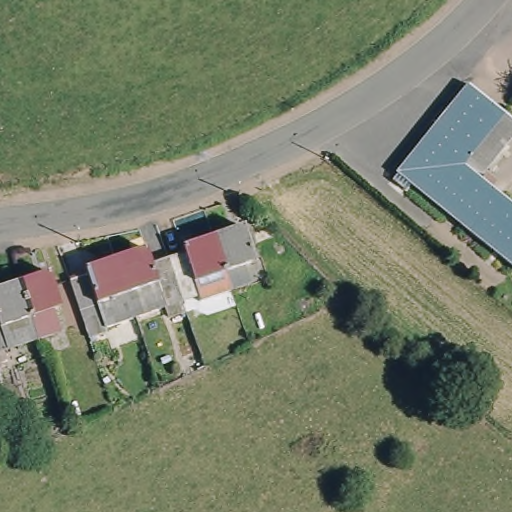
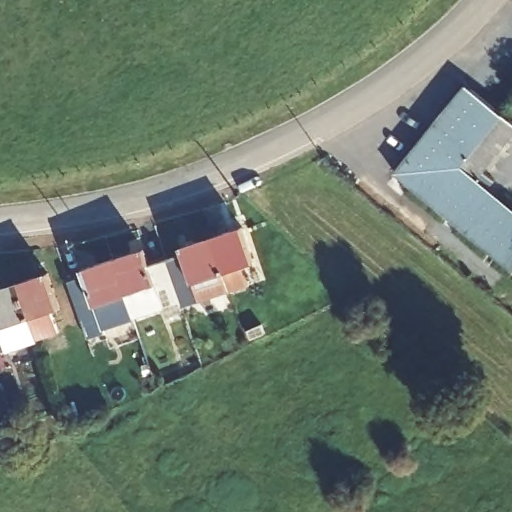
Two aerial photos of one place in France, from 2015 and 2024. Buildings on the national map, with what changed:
unchanged [(404,190),(389,179),(396,172),(467,85),(512,121),(512,135),(484,170),(495,180),(487,190),(512,210),(512,268),(410,184),(404,190)]
unchanged [(252,221),(264,256),(251,260),(258,278),(240,285),(221,232),(252,221)]
unchanged [(241,286),(209,297),(208,291),(191,297),(176,254),(193,248),(191,242),(221,232),(240,285),(241,286)]
unchanged [(184,311),(181,302),(145,315),(124,254),(155,244),(160,259),(176,254),(191,297),(195,307),(184,311)]
unchanged [(145,315),(115,324),(116,326),(98,332),(79,275),(95,270),(93,265),(124,254),(145,315)]
unchanged [(53,272),(64,307),(56,310),(63,332),(41,339),(22,282),(53,272)]
unchanged [(41,339),(0,353),(0,290),(22,282),(41,339)]

